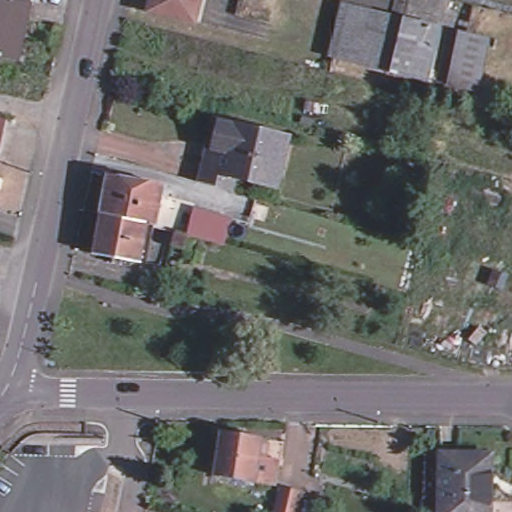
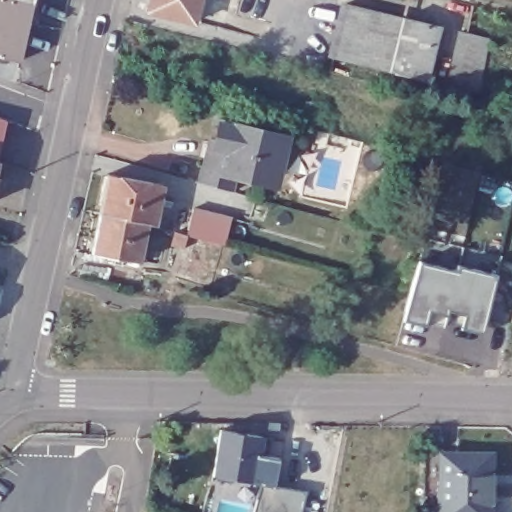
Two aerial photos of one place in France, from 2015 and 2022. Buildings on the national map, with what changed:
unchanged [(33,5),(28,30),(21,62),(0,57),(0,0),(34,0),(33,5)]
unchanged [(150,13),(153,0),(201,0),(195,25),(150,13)]
unchanged [(394,75),(335,60),(345,18),(348,7),(407,21),(406,22),(439,30),(436,41),(426,82),(394,75)]
unchanged [(466,38),(492,44),(490,54),(489,57),(483,56),(475,92),(454,87),(464,47),(466,38)]
unchanged [(267,170),(265,177),(237,171),(233,191),(196,181),(200,165),(205,166),(220,120),(289,136),(282,162),(280,174),(267,170)]
unchanged [(154,227),(101,217),(101,214),(109,175),(162,184),(154,227)]
unchanged [(226,242),(188,232),(195,206),(233,216),(226,242)]
unchanged [(147,265),(95,255),(101,217),(154,227),(147,265)]
unchanged [(165,238),(168,227),(180,230),(177,241),(165,238)]
new [(502,269),(486,339),(460,332),(461,327),(462,324),(445,320),(445,327),(426,322),(425,324),(404,319),(420,263),(456,272),(458,266),(462,267),(463,259),(502,269)]
unchanged [(272,464),(270,479),(259,477),(258,483),(251,482),(212,475),(221,430),(260,437),(259,443),(265,444),(263,456),(268,457),(272,464)]
unchanged [(493,452),(492,512),(440,512),(442,449),(493,452)]
unchanged [(302,492),(297,512),(277,512),(283,486),(302,492)]
unchanged [(318,512),(303,512),(305,501),(320,504),(318,512)]

